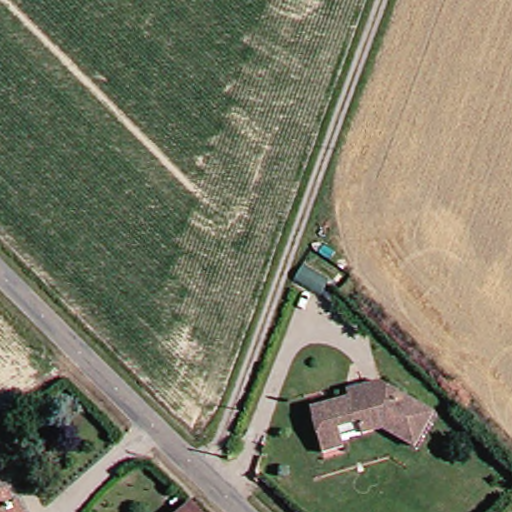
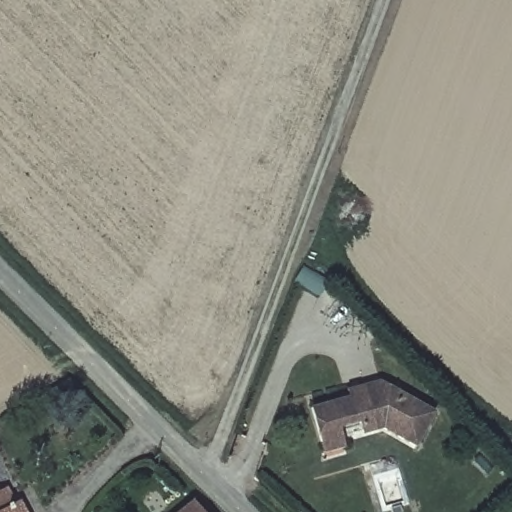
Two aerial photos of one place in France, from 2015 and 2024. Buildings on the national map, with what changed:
unchanged [(315,452),(311,437),(303,404),(361,390),(362,383),(370,379),(427,412),(408,449),(373,428),(351,436),(346,419),(326,422),(328,432),(333,450),(315,452)]
unchanged [(0,474),(10,489),(17,500),(0,509),(0,474)]
unchanged [(212,512),(182,512),(200,497),(212,512)]
unchanged [(25,512),(0,512),(0,509),(17,500),(25,512)]

